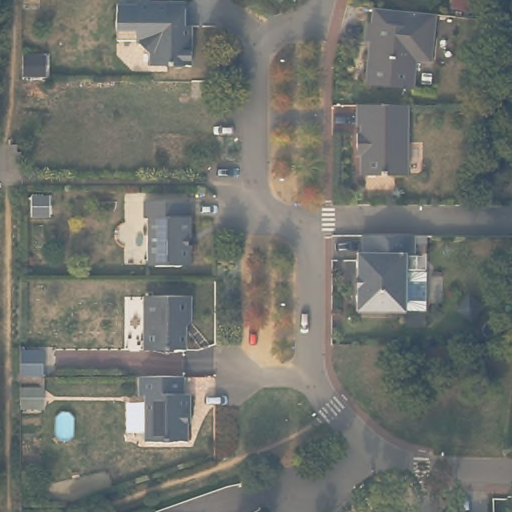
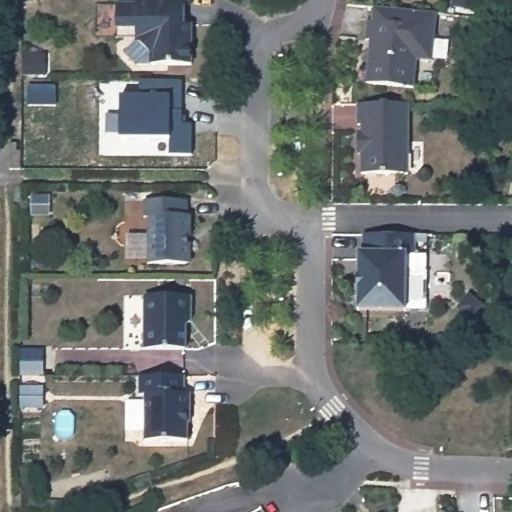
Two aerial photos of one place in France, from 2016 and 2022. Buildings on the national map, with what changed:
unchanged [(122,26),(122,1),(142,1),(142,0),(190,0),(190,15),(190,21),(197,21),(197,62),(157,62),(157,51),(146,39),(142,39),(142,36),(122,36),(122,26)]
unchanged [(370,22),(375,22),(376,8),(391,9),(414,11),(438,14),(433,61),(418,60),(416,89),(368,84),(372,51),(372,41),(367,40),(370,22)]
unchanged [(44,59),(44,78),(25,78),(25,59),(44,59)]
new [(182,110),(182,123),(194,123),(193,155),(169,155),(169,139),(119,139),(122,95),(140,95),(141,79),(184,80),(182,110)]
unchanged [(370,151),(370,129),(374,129),(374,122),(370,122),(370,101),(376,101),(421,101),(421,171),(374,171),(374,157),(370,157),(370,151)]
unchanged [(19,147),(19,154),(22,154),(22,172),(12,172),(12,147),(19,147)]
unchanged [(196,258),(194,262),(154,262),(154,215),(150,215),(150,198),(193,198),(193,213),(197,213),(196,235),(196,242),(196,258)]
unchanged [(435,231),(435,238),(422,238),(422,251),(415,250),(414,270),(431,270),(431,307),(413,306),(413,307),(365,307),(366,248),(370,248),(371,231),(422,231),(435,231)]
unchanged [(197,293),(197,316),(191,321),(191,343),(150,343),(151,293),(197,293)]
unchanged [(40,353),(40,377),(22,377),(22,373),(22,353),(40,353)]
unchanged [(200,424),(200,442),(157,442),(157,396),(151,396),(151,377),(181,377),(196,377),(196,394),(202,394),(202,413),(202,424),(200,424)]
unchanged [(40,389),(40,409),(22,409),(22,392),(22,390),(40,389)]

